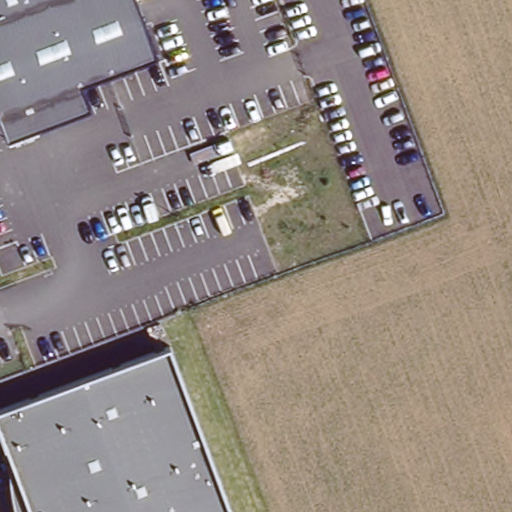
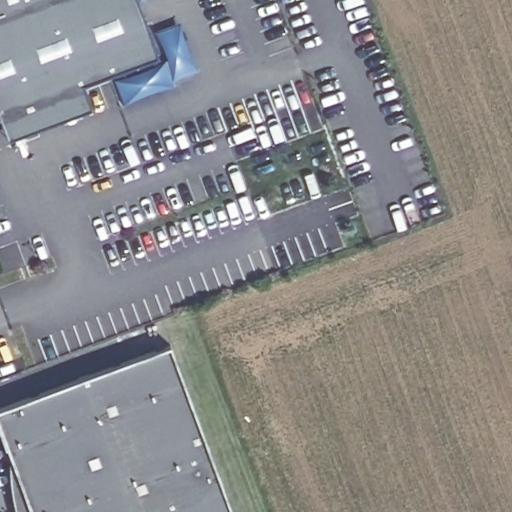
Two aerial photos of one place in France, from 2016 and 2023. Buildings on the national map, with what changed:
unchanged [(160,55),(80,85),(89,109),(6,137),(0,120),(0,0),(140,0),(160,55)]
unchanged [(13,497),(11,484),(9,470),(9,457),(9,451),(0,426),(0,405),(169,341),(229,499),(195,512),(17,512),(16,511),(13,497)]
unchanged [(234,512),(195,512),(229,499),(234,512)]

